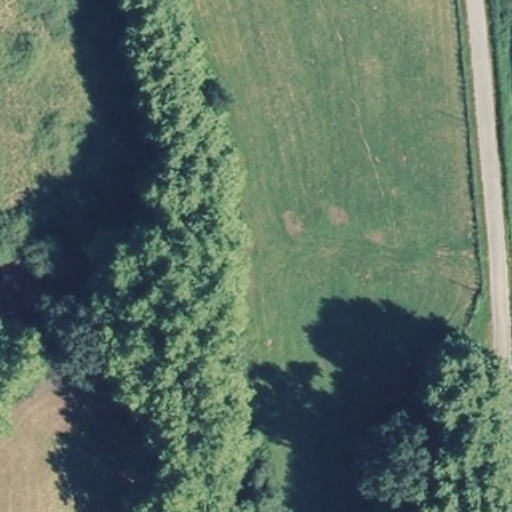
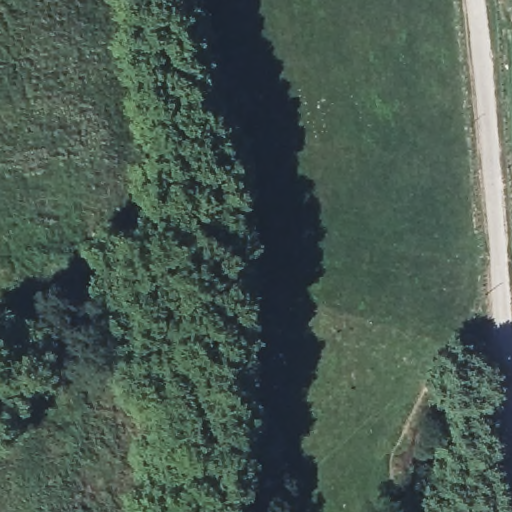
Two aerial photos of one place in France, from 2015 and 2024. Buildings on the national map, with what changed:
[]

